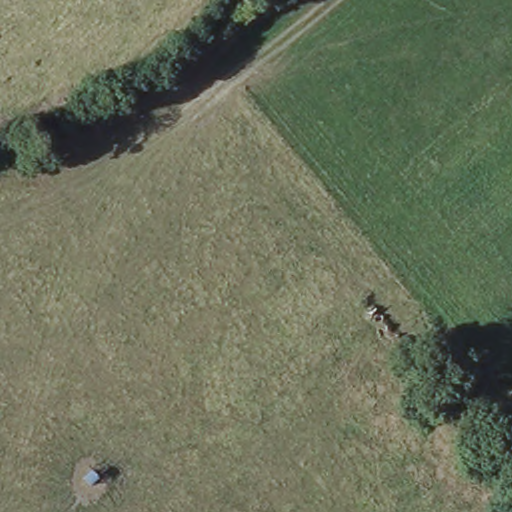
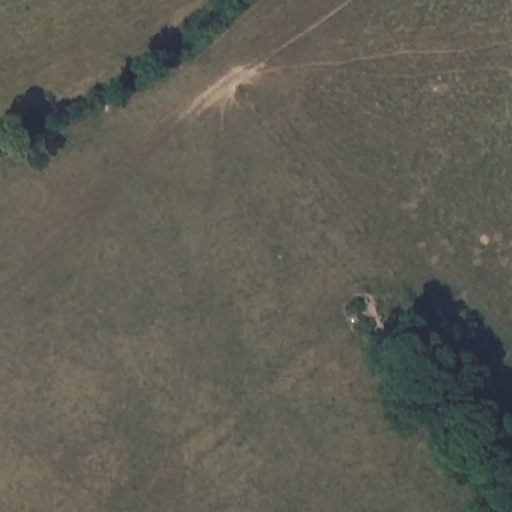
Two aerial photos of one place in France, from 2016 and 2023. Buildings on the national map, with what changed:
[]

